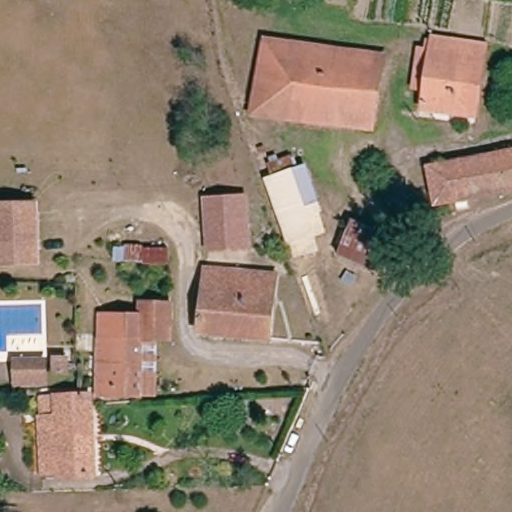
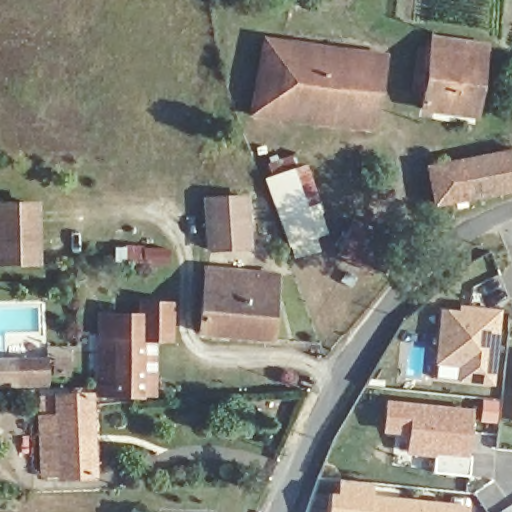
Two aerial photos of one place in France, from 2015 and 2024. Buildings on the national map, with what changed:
unchanged [(371,135),(252,119),(265,45),(384,61),(371,135)]
unchanged [(475,54),(474,64),(482,64),(473,125),(433,119),(436,100),(423,99),(429,60),(441,61),(443,49),(475,54)]
unchanged [(512,151),(512,190),(434,204),(428,169),(512,151)]
unchanged [(324,240),(315,243),(289,252),(265,185),(273,183),(269,170),(290,163),(297,174),(306,172),(319,209),(320,216),(315,218),(324,240)]
unchanged [(206,200),(246,199),(249,249),(209,250),(206,200)]
unchanged [(41,213),(42,264),(1,264),(0,264),(0,213),(1,213),(41,213)]
unchanged [(337,256),(349,229),(394,249),(383,275),(337,256)]
unchanged [(169,264),(119,264),(120,250),(169,250),(169,264)]
unchanged [(269,346),(199,339),(206,274),(275,282),(269,346)]
new [(491,385),(459,382),(461,367),(437,364),(442,312),(469,314),(470,309),(499,313),(491,385)]
new [(469,314),(459,314),(460,309),(470,309),(469,314)]
unchanged [(135,407),(93,408),(94,330),(135,330),(135,315),(168,315),(167,352),(151,352),(150,407),(135,407)]
unchanged [(16,383),(16,363),(43,362),(44,382),(16,383)]
new [(470,413),(468,434),(463,434),(460,457),(470,458),(468,477),(432,474),(434,455),(409,453),(410,434),(384,431),(388,404),(470,413)]
unchanged [(36,409),(85,407),(89,488),(54,490),(54,483),(51,425),(37,426),(36,409)]
unchanged [(54,483),(37,484),(34,426),(37,426),(51,425),(54,483)]
new [(410,434),(409,453),(434,455),(433,470),(392,466),(395,438),(385,437),(384,431),(410,434)]
new [(371,484),(369,499),(467,508),(466,512),(330,512),(332,498),(339,499),(341,482),(371,484)]

